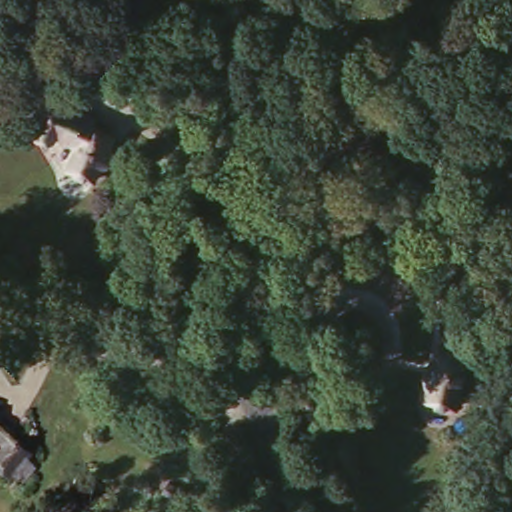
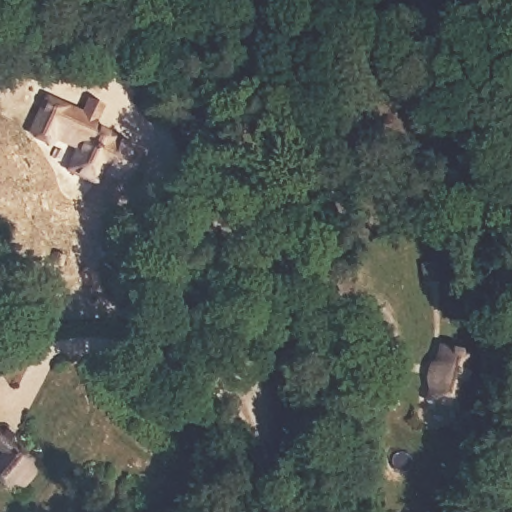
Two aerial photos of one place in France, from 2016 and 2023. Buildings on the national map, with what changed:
unchanged [(86,104),(84,110),(106,120),(86,164),(60,152),(71,129),(46,117),(44,122),(24,113),(38,81),(86,104)]
unchanged [(475,347),(462,401),(432,395),(445,340),(475,347)]
unchanged [(24,457),(32,465),(21,478),(4,463),(14,452),(0,441),(0,430),(28,453),(24,457)]

